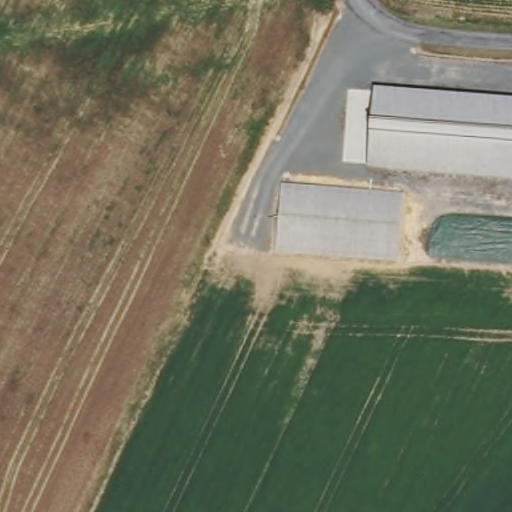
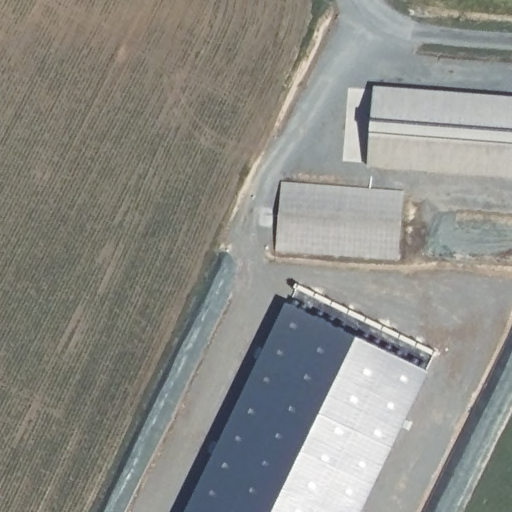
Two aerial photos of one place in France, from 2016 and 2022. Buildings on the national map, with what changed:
unchanged [(375,87),(512,98),(512,178),(369,167),(375,87)]
unchanged [(276,252),(282,184),(404,192),(398,262),(276,252)]
new [(361,512),(186,512),(287,302),(429,371),(361,512)]

